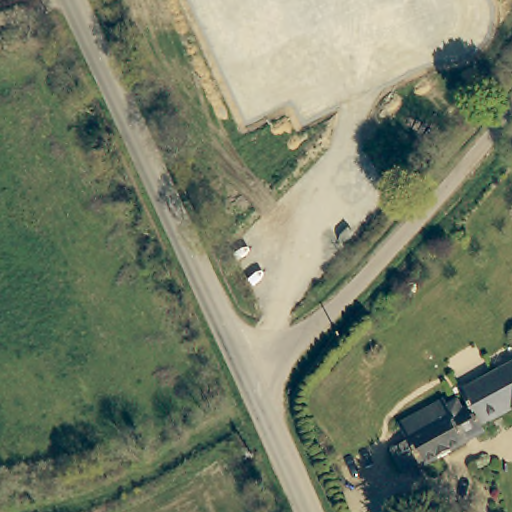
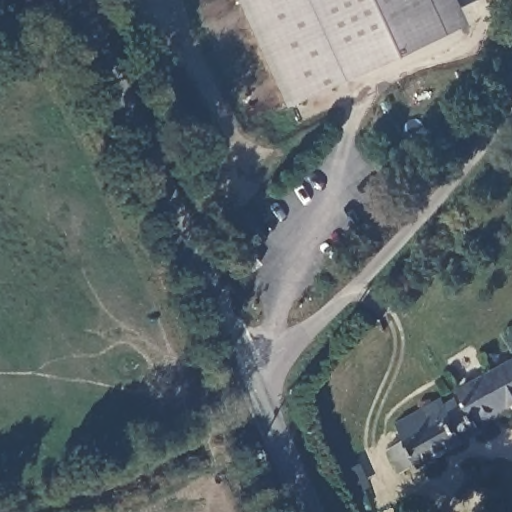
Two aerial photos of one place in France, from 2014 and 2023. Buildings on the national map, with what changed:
new [(464,26),(440,37),(339,82),(283,106),(234,0),(452,0),(464,26)]
unchanged [(395,446),(410,437),(403,423),(447,399),(451,404),(461,398),(467,408),(474,406),(466,392),(512,365),(512,410),(469,433),(471,438),(424,464),(421,460),(405,469),(395,446)]

